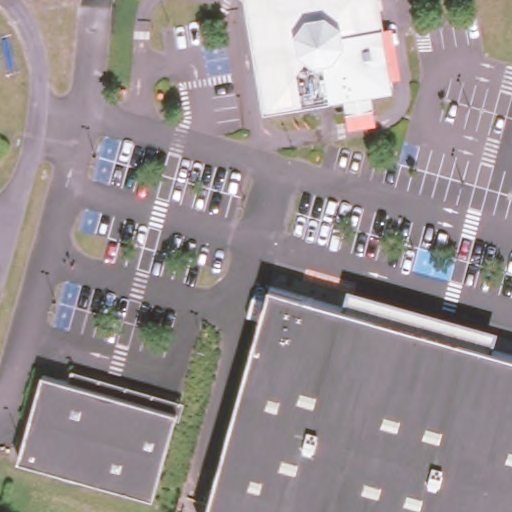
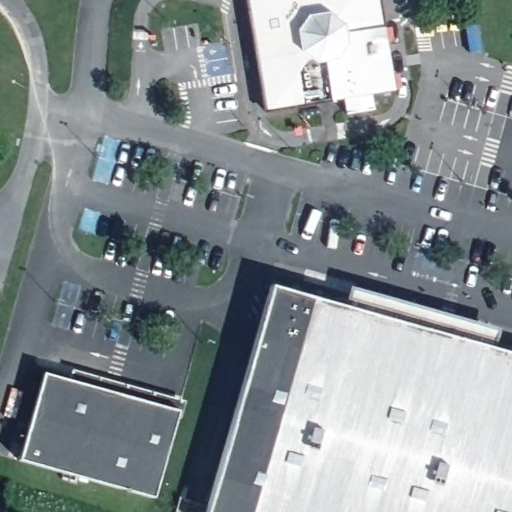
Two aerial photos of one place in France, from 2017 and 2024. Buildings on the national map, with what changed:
unchanged [(377,19),(378,25),(375,27),(379,57),(383,57),(384,65),(380,65),(383,80),(360,84),(363,100),(336,104),(335,87),(254,102),(237,0),(370,0),(372,20),(377,19)]
unchanged [(264,285),(512,355),(512,512),(198,512),(264,285)]
unchanged [(63,381),(67,372),(175,402),(172,412),(63,381)]
unchanged [(147,499),(12,460),(37,373),(63,381),(172,412),(147,499)]

